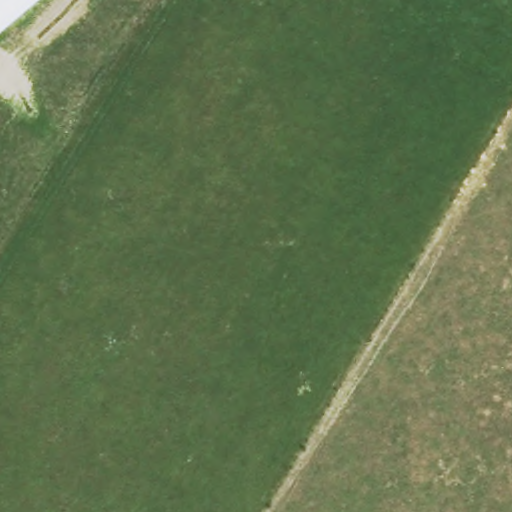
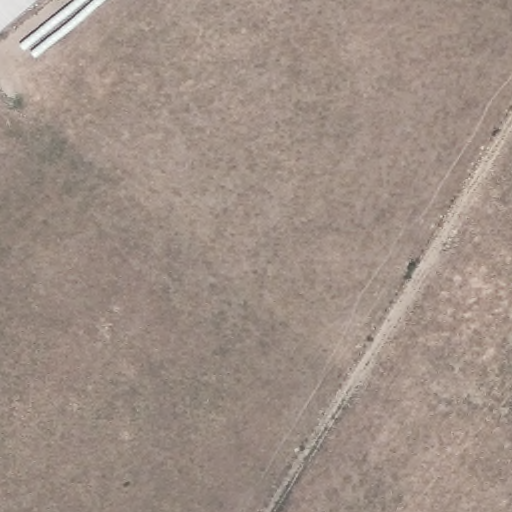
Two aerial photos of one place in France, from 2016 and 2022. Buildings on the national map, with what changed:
unchanged [(0,33),(0,0),(39,0),(0,33)]

